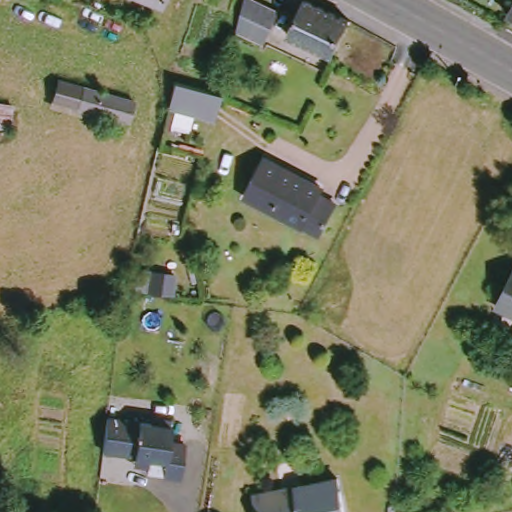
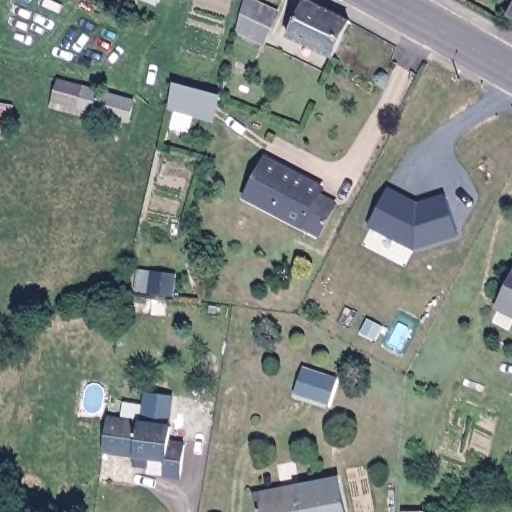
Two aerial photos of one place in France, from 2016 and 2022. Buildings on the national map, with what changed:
unchanged [(161,4),(151,0),(162,0),(161,4)]
unchanged [(286,18),(271,48),(244,34),(251,0),(252,0),(286,18)]
unchanged [(356,21),(340,57),(294,34),(310,0),(317,0),(356,21)]
unchanged [(141,103),(134,123),(60,100),(68,80),(141,103)]
unchanged [(199,115),(192,138),(169,132),(180,84),(227,97),(221,121),(199,115)]
unchanged [(18,131),(0,127),(0,102),(23,106),(18,131)]
unchanged [(329,190),(326,196),(342,205),(327,236),(253,199),(271,162),(329,190)]
new [(421,205),(446,195),(458,235),(414,249),(370,227),(389,190),(421,205)]
unchanged [(181,266),(178,296),(128,289),(131,271),(168,276),(169,265),(181,266)]
unchanged [(503,309),(512,291),(512,314),(503,309)]
new [(304,372),(338,387),(326,412),(293,397),(304,372)]
unchanged [(139,454),(106,449),(110,417),(174,425),(172,441),(188,443),(183,476),(151,472),(151,465),(138,463),(139,454)]
unchanged [(352,512),(266,512),(264,501),(346,485),(352,512)]

